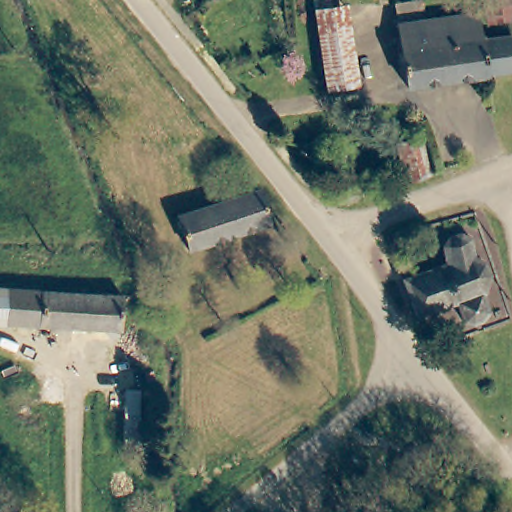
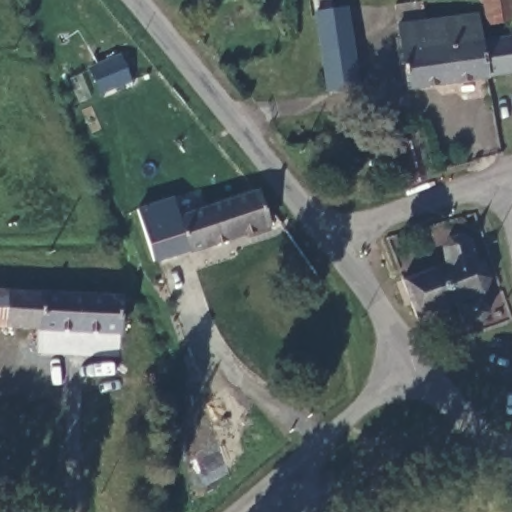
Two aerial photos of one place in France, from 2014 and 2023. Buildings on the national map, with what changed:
unchanged [(322,32),(320,11),(318,0),(336,0),(337,10),(352,9),(354,29),(361,87),(331,91),(322,32)]
unchanged [(400,25),(397,4),(424,0),(427,21),(480,13),(483,37),(490,75),(408,87),(400,25)]
unchanged [(488,16),(485,0),(512,0),(512,13),(510,14),(488,16)]
unchanged [(512,18),(512,34),(510,18),(512,18)]
unchanged [(512,34),(512,72),(490,75),(483,37),(512,34)]
new [(136,81),(100,96),(88,66),(124,52),(136,81)]
unchanged [(407,183),(401,147),(427,142),(432,176),(407,183)]
unchanged [(273,222),(194,252),(182,217),(262,189),(273,222)]
new [(192,247),(156,260),(139,210),(175,197),(182,217),(192,247)]
unchanged [(443,250),(445,239),(456,234),(467,241),(476,259),(482,259),(487,277),(480,294),(485,312),(479,324),(468,328),(458,320),(453,307),(421,318),(407,278),(447,263),(443,250)]
unchanged [(10,289),(10,323),(0,323),(0,289),(10,289)]
unchanged [(44,290),(44,325),(10,323),(10,289),(44,290)]
unchanged [(44,290),(78,291),(78,326),(44,325),(44,290)]
unchanged [(124,292),(124,327),(78,326),(78,291),(124,292)]

